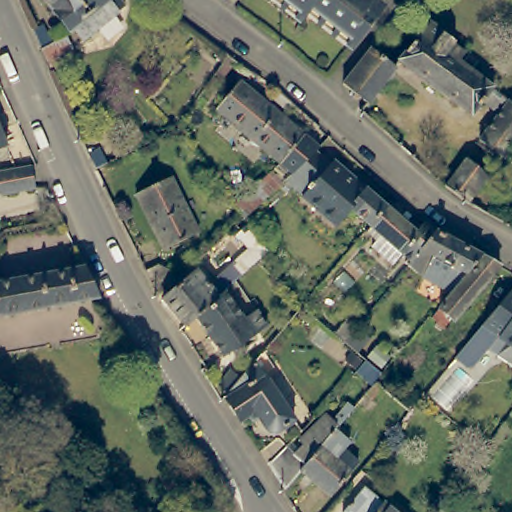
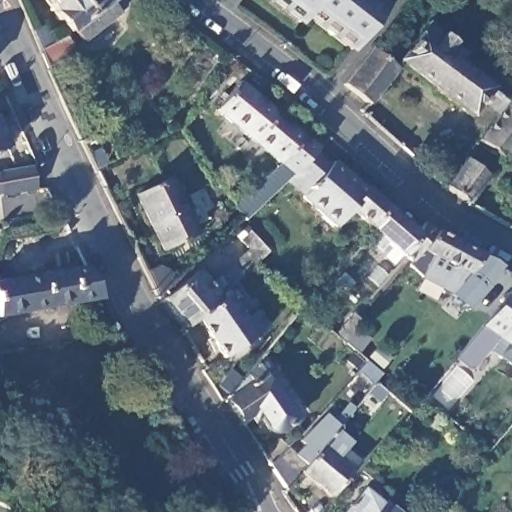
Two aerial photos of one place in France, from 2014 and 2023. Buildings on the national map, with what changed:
unchanged [(80,29),(71,17),(67,20),(51,0),(108,0),(111,4),(80,29)]
unchanged [(383,8),(349,49),(305,15),(298,23),(268,0),(373,0),(383,8)]
unchanged [(455,44),(453,47),(465,56),(460,64),(512,104),(512,152),(505,161),(482,146),(500,119),(485,106),(474,120),(401,65),(430,24),(455,44)]
unchanged [(65,26),(74,49),(45,62),(35,39),(65,26)]
unchanged [(371,53),(396,72),(370,108),(368,107),(344,89),(371,53)]
unchanged [(282,185),(247,219),(236,207),(282,164),(218,110),(241,80),(320,148),(282,185)]
unchanged [(14,146),(0,153),(0,115),(0,114),(14,146)]
unchanged [(89,154),(101,148),(109,163),(96,169),(89,154)]
unchanged [(383,235),(372,225),(353,209),(335,231),(282,185),(320,148),(369,190),(388,206),(418,232),(427,222),(436,231),(412,261),(404,253),(395,266),(372,248),(383,235)]
unchanged [(468,158),(491,176),(471,203),(464,199),(447,186),(468,158)]
unchanged [(9,200),(8,197),(0,199),(0,176),(39,169),(42,193),(9,200)]
unchanged [(168,181),(196,236),(161,254),(134,200),(168,181)]
unchanged [(231,285),(223,293),(219,297),(196,320),(187,328),(185,326),(163,301),(195,273),(206,286),(246,250),(235,236),(239,233),(244,228),(245,230),(265,252),(260,258),(254,263),(231,285)]
unchanged [(452,295),(409,265),(412,261),(436,231),(485,256),(452,295)]
unchanged [(457,318),(453,317),(442,329),(437,324),(441,321),(435,316),(452,295),(485,256),(501,265),(457,318)]
unchanged [(104,303),(0,320),(0,285),(88,271),(104,303)]
unchanged [(498,353),(507,339),(500,333),(472,368),(457,358),(512,289),(512,362),(498,353)]
unchanged [(240,320),(254,311),(265,329),(220,358),(196,320),(219,297),(223,293),(240,320)]
unchanged [(336,335),(354,313),(363,321),(345,343),(336,335)]
unchanged [(273,379),(303,427),(285,438),(280,437),(273,435),(262,418),(249,429),(234,404),(236,401),(227,392),(240,377),(250,385),(271,359),(282,373),(273,379)]
unchanged [(375,386),(357,370),(366,360),(385,375),(378,383),(375,386)]
unchanged [(262,452),(279,440),(290,450),(300,458),(308,448),(304,444),(329,416),(336,424),(341,420),(344,423),(337,431),(302,472),(305,473),(287,490),(271,465),(262,452)]
unchanged [(352,443),(345,451),(360,464),(332,497),(305,473),(302,472),(337,431),(352,443)]
unchanged [(378,505),(382,501),(386,505),(383,509),(386,512),(346,512),(363,493),(378,505)]

